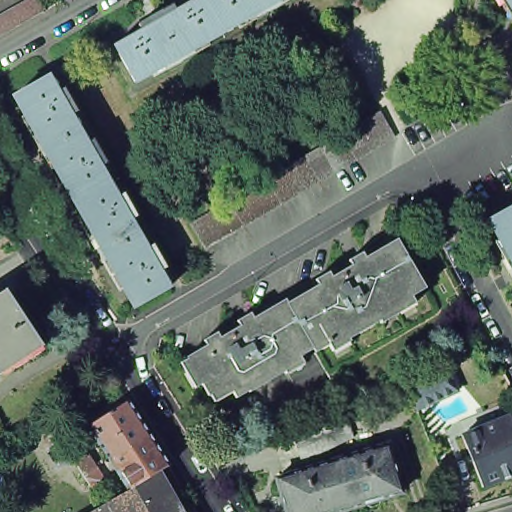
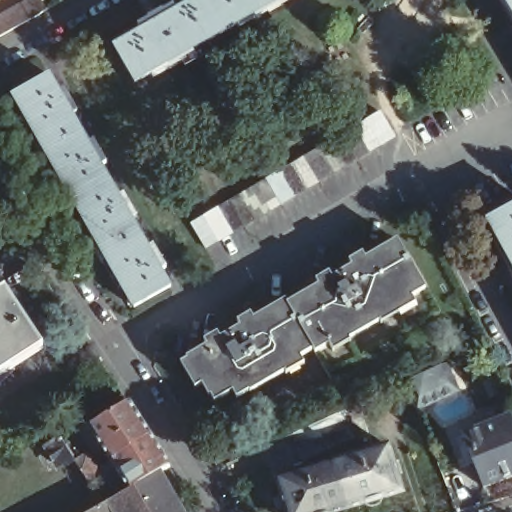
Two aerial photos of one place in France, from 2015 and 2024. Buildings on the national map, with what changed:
unchanged [(0,0),(4,0),(0,3),(0,0)]
unchanged [(42,0),(47,10),(0,36),(0,16),(29,0),(42,0)]
unchanged [(291,0),(218,42),(197,5),(207,0),(291,0)]
unchanged [(511,0),(512,0),(512,2),(511,0)]
unchanged [(148,34),(145,29),(156,23),(157,22),(160,27),(197,5),(218,42),(131,92),(110,55),(148,34)]
unchanged [(56,80),(116,186),(80,207),(53,160),(49,164),(42,151),(47,149),(20,101),(56,80)]
unchanged [(192,228),(205,220),(210,217),(217,213),(230,205),(237,200),(242,198),(255,190),(264,185),(267,183),(280,175),(291,169),(292,168),(305,161),(317,153),(330,146),(342,139),(344,138),(355,131),(367,124),(381,116),(391,133),(396,141),(382,149),(377,152),(370,156),(357,164),(350,168),(345,171),(332,178),(322,184),(320,185),(307,193),(296,199),(294,200),(282,208),(269,215),(257,223),(244,230),(242,231),(232,238),(220,245),(216,247),(206,253),(196,235),(192,228)]
unchanged [(116,186),(176,291),(140,312),(113,265),(108,268),(102,256),(107,254),(80,207),(116,186)]
unchanged [(512,210),(512,253),(494,220),(512,210)]
unchanged [(392,244),(407,269),(421,293),(390,311),(391,314),(374,324),(376,327),(345,343),(342,339),(311,357),(309,353),(282,308),(392,244)]
unchanged [(0,365),(0,288),(36,342),(0,365)]
unchanged [(278,371),(281,376),(245,397),(245,395),(232,403),(225,389),(205,401),(182,363),(281,304),(282,308),(309,353),(278,371)]
unchanged [(447,363),(459,391),(417,409),(406,382),(447,363)]
unchanged [(150,433),(109,459),(89,426),(129,401),(150,433)]
unchanged [(326,427),(325,426),(351,414),(359,443),(334,454),(313,464),(309,466),(301,439),(326,427)]
unchanged [(512,417),(512,477),(489,487),(468,434),(512,417)]
unchanged [(150,433),(170,466),(157,473),(129,490),(109,459),(150,433)]
unchanged [(69,450),(74,457),(59,466),(47,447),(62,438),(69,450)]
unchanged [(393,449),(407,497),(388,503),(384,509),(376,512),(369,509),(357,512),(352,512),(337,467),(393,449)]
unchanged [(94,489),(85,475),(77,462),(87,454),(96,468),(105,481),(94,489)]
unchanged [(337,467),(352,512),(291,512),(282,483),(337,467)]
unchanged [(104,504),(129,490),(157,473),(180,512),(111,512),(104,504)]
unchanged [(104,504),(111,512),(90,512),(104,504)]

